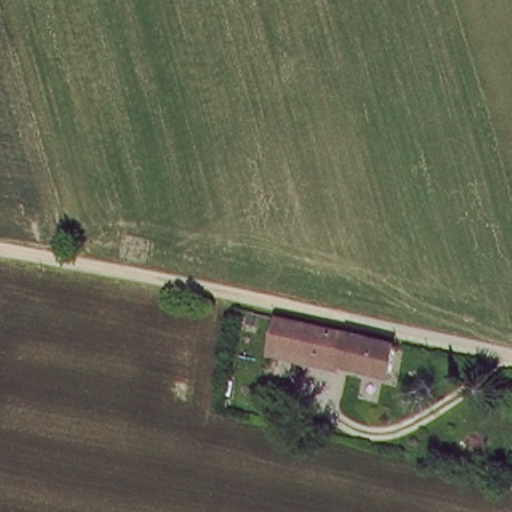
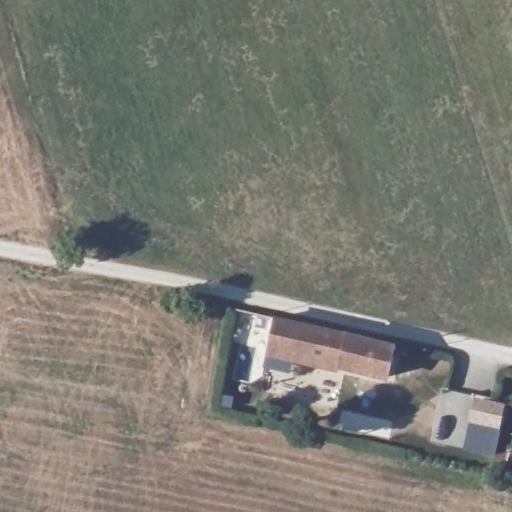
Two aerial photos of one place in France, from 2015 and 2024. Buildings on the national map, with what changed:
unchanged [(393,353),(385,381),(271,348),(277,316),(326,332),(393,353)]
new [(463,448),(474,396),(506,403),(495,455),(463,448)]

